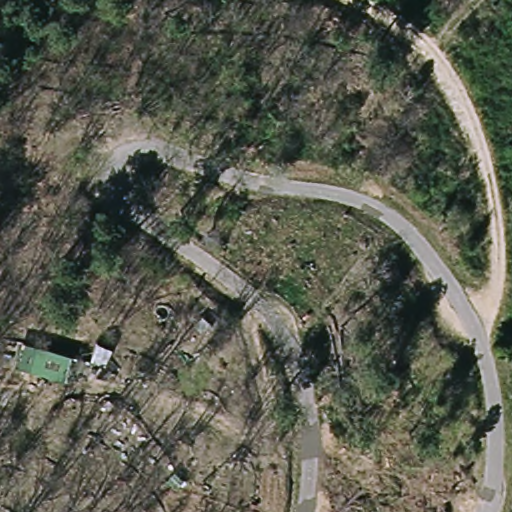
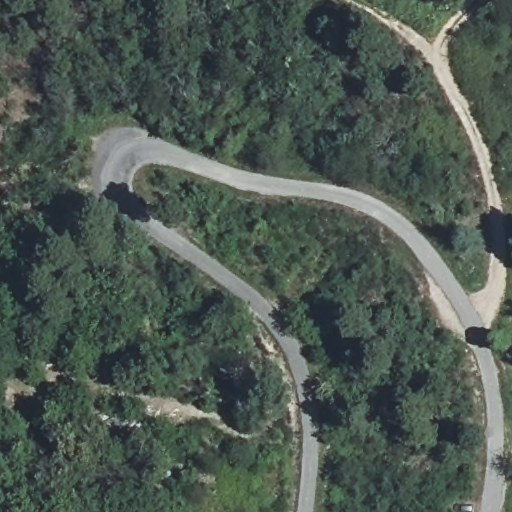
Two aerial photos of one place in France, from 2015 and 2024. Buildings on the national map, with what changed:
[]

